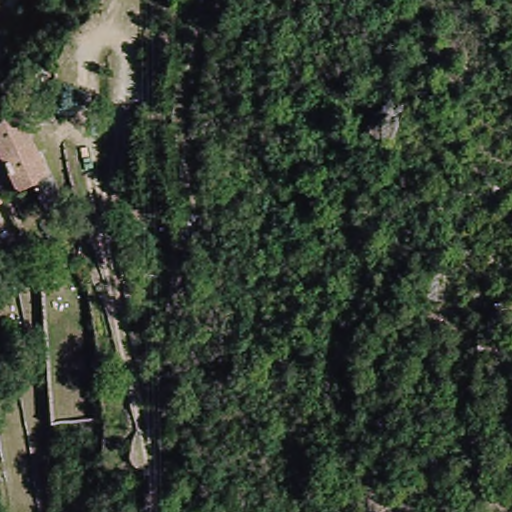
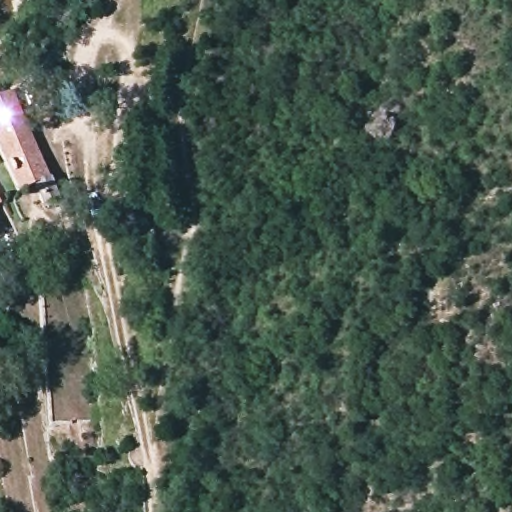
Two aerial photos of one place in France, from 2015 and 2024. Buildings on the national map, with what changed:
unchanged [(4,91),(44,179),(49,178),(56,198),(37,205),(29,187),(13,193),(0,163),(0,92),(4,91)]
unchanged [(7,209),(0,213),(0,196),(7,209)]

